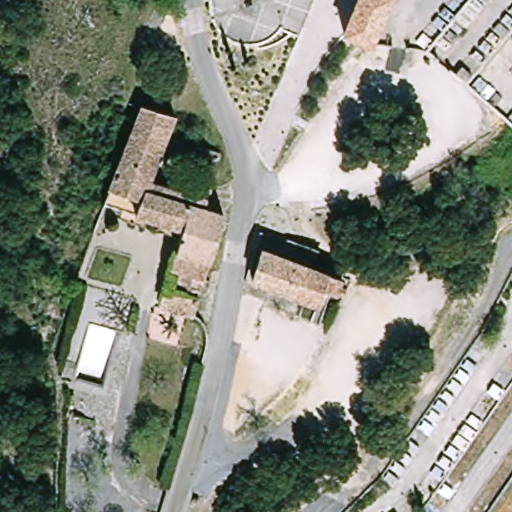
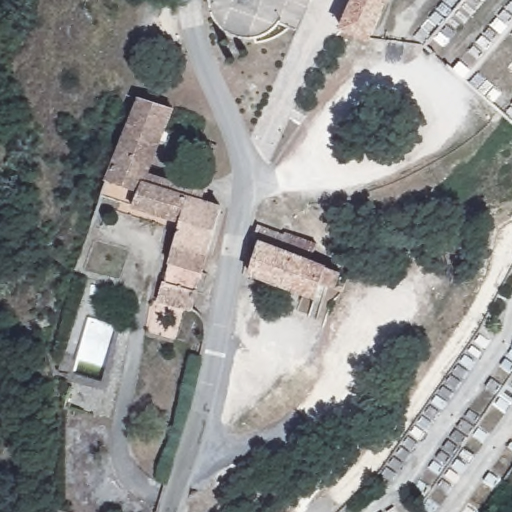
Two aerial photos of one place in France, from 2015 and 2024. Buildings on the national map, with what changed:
unchanged [(368,40),(341,28),(353,0),(385,0),(368,40)]
unchanged [(225,207),(195,312),(161,301),(184,224),(106,196),(144,98),(178,110),(170,131),(152,174),(210,193),(208,201),(225,207)]
unchanged [(196,158),(200,142),(216,147),(212,163),(196,158)]
unchanged [(249,242),(255,225),(279,234),(280,232),(312,243),(306,262),(335,273),(329,289),(314,283),(309,298),(246,275),(255,244),(249,242)]

